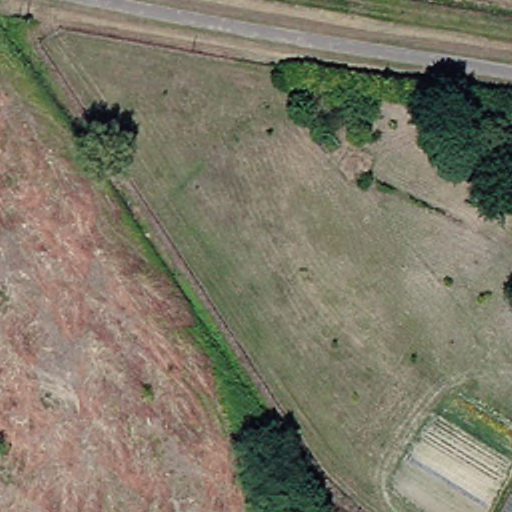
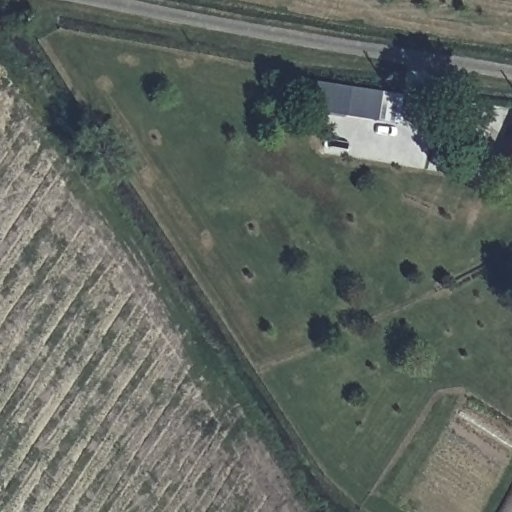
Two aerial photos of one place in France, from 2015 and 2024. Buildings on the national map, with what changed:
new [(310,111),(315,81),(381,91),(380,102),(399,105),(396,124),(310,111)]
new [(504,165),(512,147),(512,170),(504,165)]
unchanged [(503,512),(512,495),(512,512),(503,512)]

